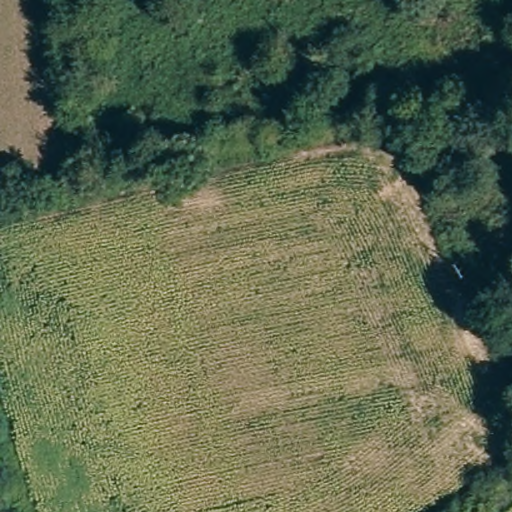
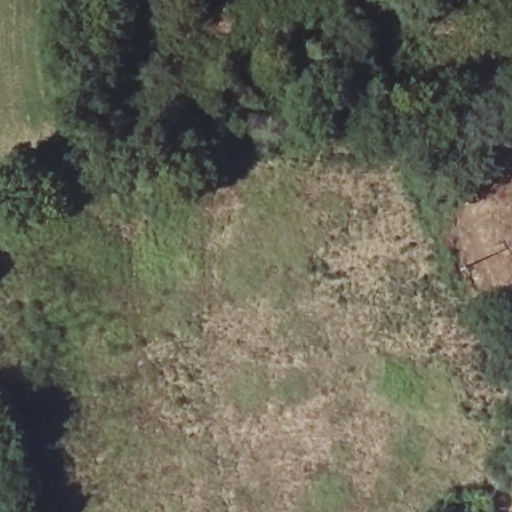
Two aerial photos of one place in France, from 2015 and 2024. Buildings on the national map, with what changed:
[]

